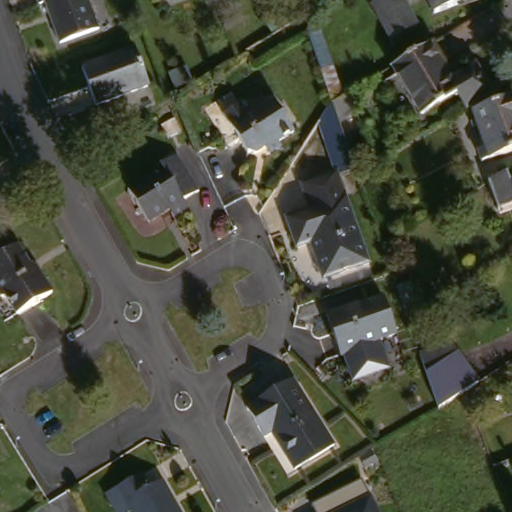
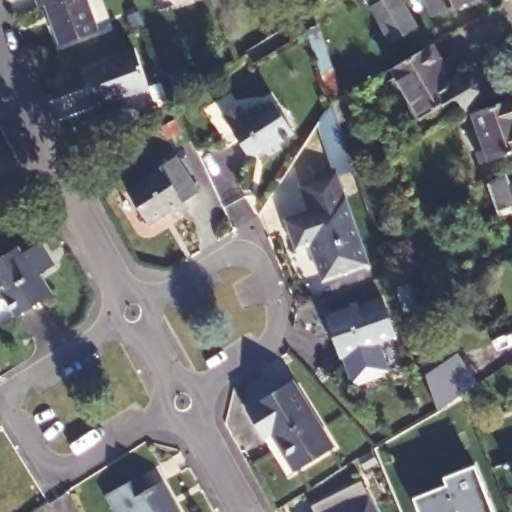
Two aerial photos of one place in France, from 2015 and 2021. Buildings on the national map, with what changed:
unchanged [(62,46),(49,4),(42,6),(40,0),(91,0),(101,33),(62,46)]
unchanged [(402,0),(417,28),(391,41),(373,8),(386,0),(402,0)]
unchanged [(429,20),(421,0),(469,0),(471,6),(429,20)]
unchanged [(138,11),(142,23),(133,26),(129,13),(138,11)]
unchanged [(352,105),(340,127),(359,173),(338,180),(336,174),(318,131),(331,107),(308,38),(321,30),(352,105)]
unchanged [(439,66),(436,67),(444,80),(469,67),(486,98),(460,113),(452,99),(416,119),(386,69),(428,45),(439,66)]
unchanged [(132,51),(145,89),(91,108),(78,70),(132,51)]
unchanged [(512,101),(512,151),(484,161),(468,115),(512,100),(512,101)]
unchanged [(289,138),(273,148),(277,154),(264,161),(260,154),(251,159),(243,157),(220,119),(236,108),(242,116),(255,108),(260,114),(271,108),(289,138)]
unchanged [(198,192),(184,203),(187,209),(172,219),(169,213),(150,225),(129,195),(161,172),(159,168),(175,158),(198,192)]
unchanged [(512,206),(492,212),(483,185),(502,174),(506,184),(512,182),(512,206)]
unchanged [(297,188),(332,176),(333,179),(364,264),(320,281),(307,245),(292,250),(286,233),(282,221),(295,216),(306,212),(297,188)]
unchanged [(35,271),(42,273),(41,277),(54,297),(19,318),(9,302),(2,300),(0,296),(0,259),(19,247),(35,271)]
unchanged [(405,311),(397,289),(396,287),(411,283),(419,308),(405,311)]
unchanged [(349,308),(349,310),(379,299),(392,337),(375,344),(385,371),(350,384),(341,358),(338,359),(324,317),(349,308)]
unchanged [(420,355),(451,344),(467,390),(461,393),(439,408),(420,355)]
unchanged [(335,448),(296,475),(275,443),(276,442),(273,436),(265,441),(247,414),(291,382),(335,448)]
new [(443,479),(474,465),(493,512),(418,512),(413,499),(446,486),(443,479)]
unchanged [(112,511),(105,496),(139,477),(146,491),(158,486),(170,508),(173,507),(176,512),(112,512),(112,511)]
unchanged [(314,502),(366,479),(381,512),(317,512),(314,502)]

